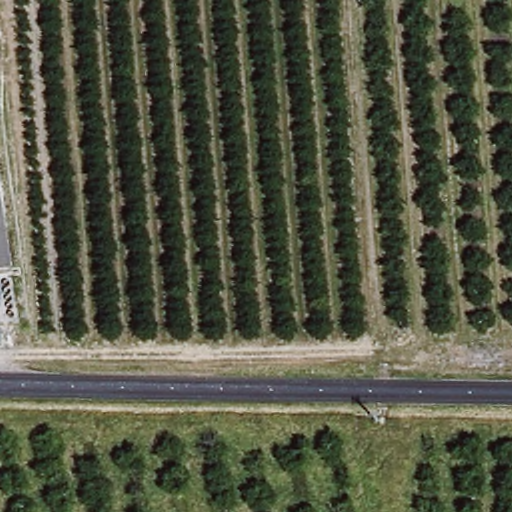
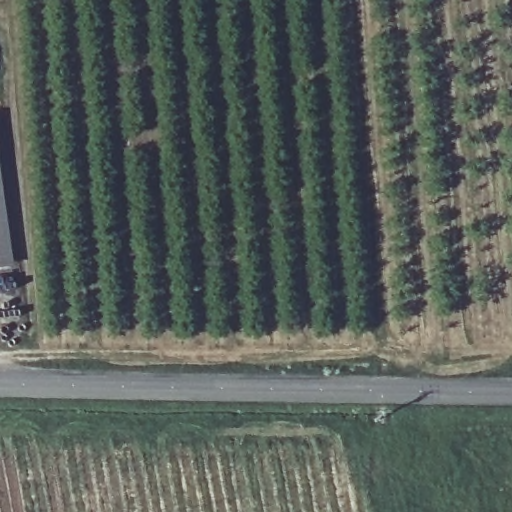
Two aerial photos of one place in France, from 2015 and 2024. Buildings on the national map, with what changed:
unchanged [(0,269),(0,205),(7,268),(0,269)]

